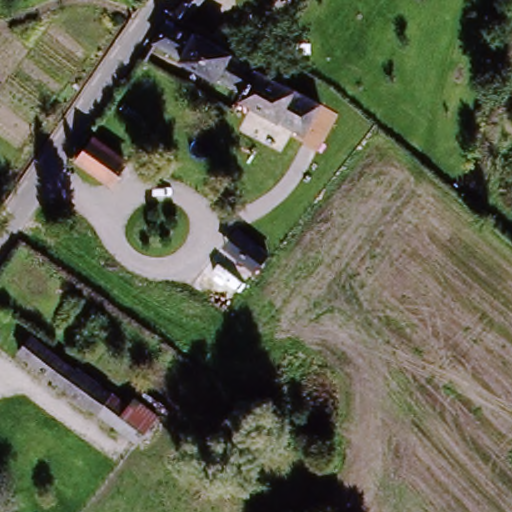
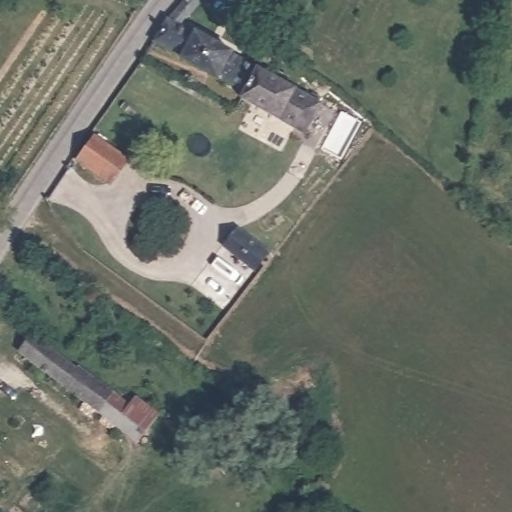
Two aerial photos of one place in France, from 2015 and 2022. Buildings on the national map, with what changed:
unchanged [(176,24),(195,0),(213,0),(186,31),(176,24)]
unchanged [(220,80),(217,84),(184,65),(186,61),(161,46),(176,24),(186,31),(199,40),(202,36),(234,55),(231,59),(260,75),(257,80),(246,96),(220,80)]
unchanged [(243,103),(246,96),(257,80),(260,75),(320,110),(304,138),(243,103)]
unchanged [(88,145),(119,166),(106,185),(75,163),(88,145)]
unchanged [(277,267),(275,270),(266,283),(247,270),(259,254),(277,267)]
unchanged [(140,442),(115,426),(14,358),(27,341),(72,374),(75,369),(128,407),(133,400),(157,416),(140,442)]

